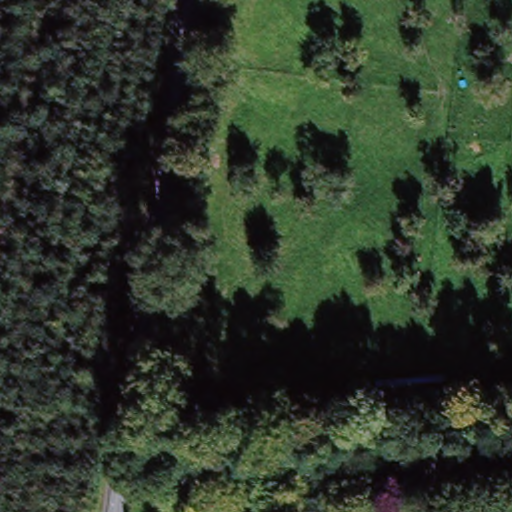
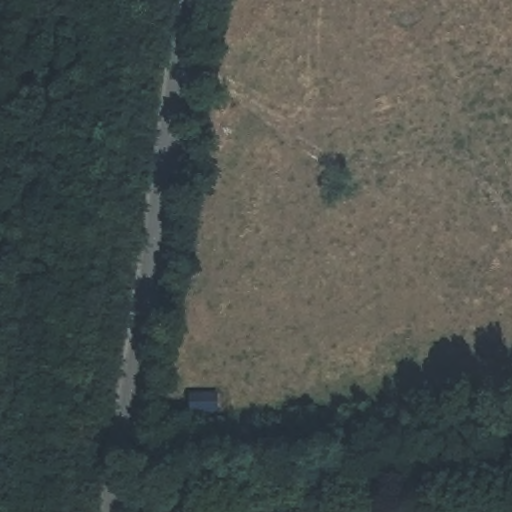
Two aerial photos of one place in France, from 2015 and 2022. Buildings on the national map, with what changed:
unchanged [(200,144),(202,118),(215,119),(214,144),(200,144)]
unchanged [(448,404),(383,409),(381,387),(447,382),(448,404)]
unchanged [(187,398),(223,398),(224,419),(187,421),(187,398)]

